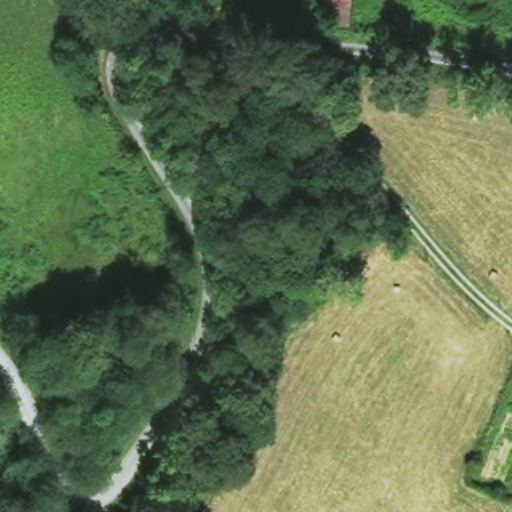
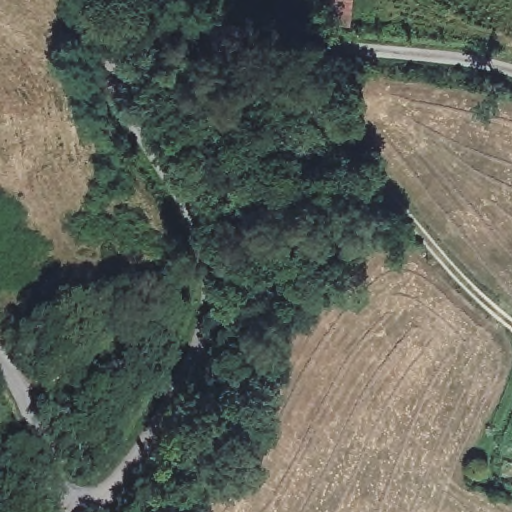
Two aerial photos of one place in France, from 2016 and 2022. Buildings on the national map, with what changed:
unchanged [(349,18),(319,17),(321,0),(351,0),(349,18)]

